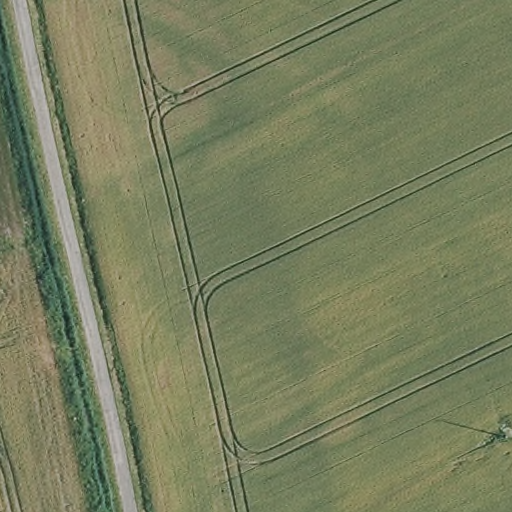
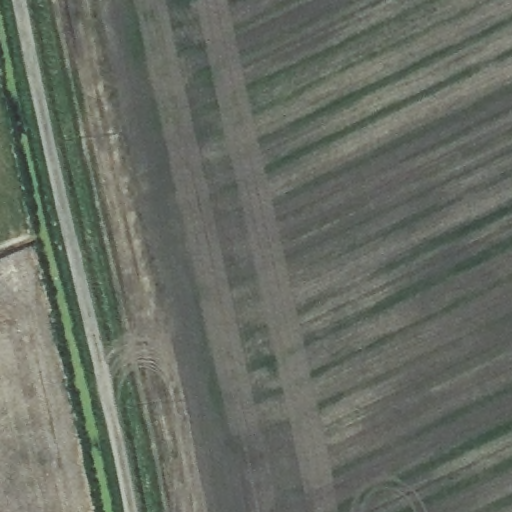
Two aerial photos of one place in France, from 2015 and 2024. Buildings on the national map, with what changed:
[]

